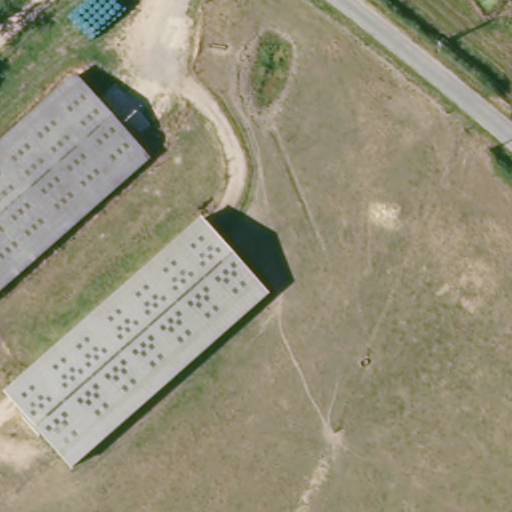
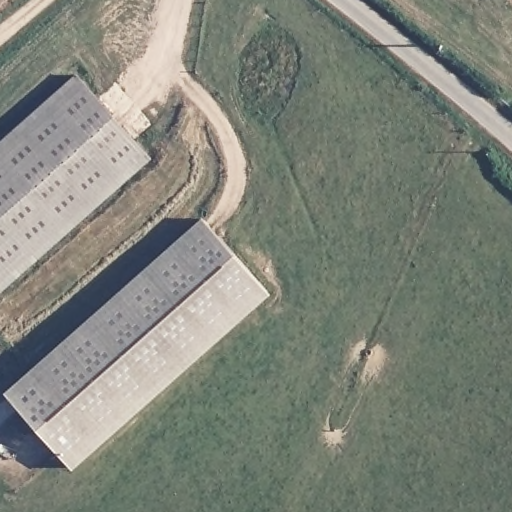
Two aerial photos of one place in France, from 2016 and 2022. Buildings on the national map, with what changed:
unchanged [(0,296),(0,152),(86,79),(156,161),(156,162),(0,296)]
unchanged [(268,293),(68,464),(3,388),(203,217),(268,293)]

